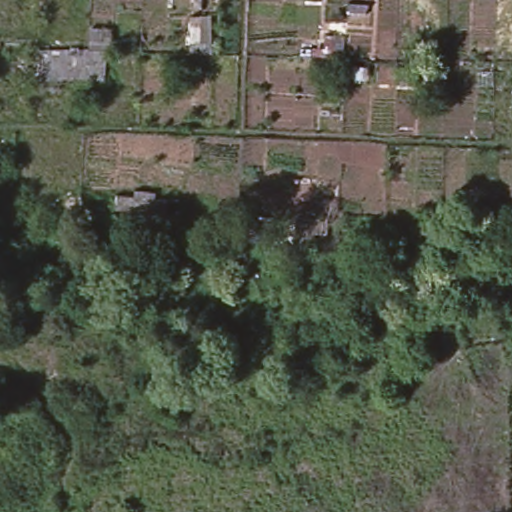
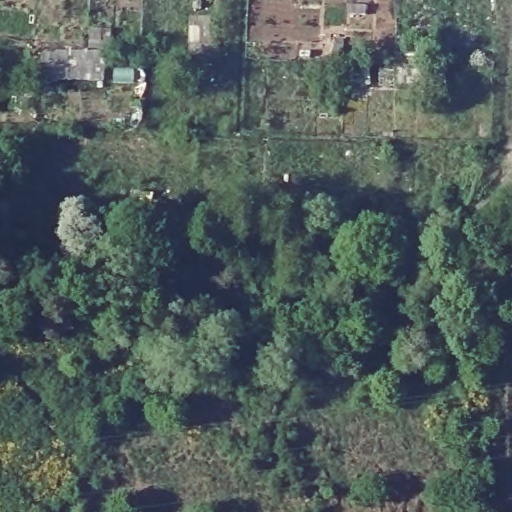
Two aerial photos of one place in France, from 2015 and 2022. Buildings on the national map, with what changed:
unchanged [(87,47),(90,26),(110,27),(109,50),(105,50),(106,65),(107,81),(37,82),(37,49),(87,47)]

